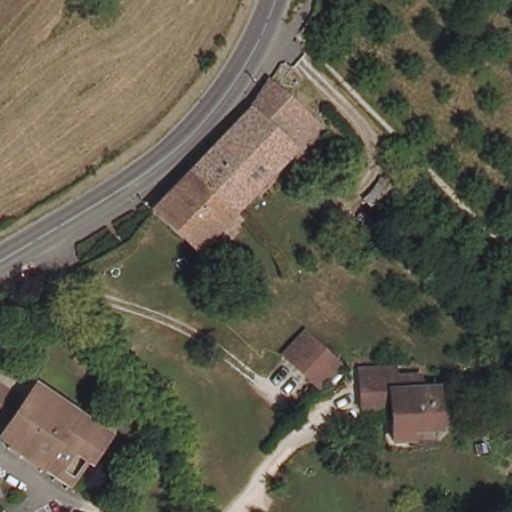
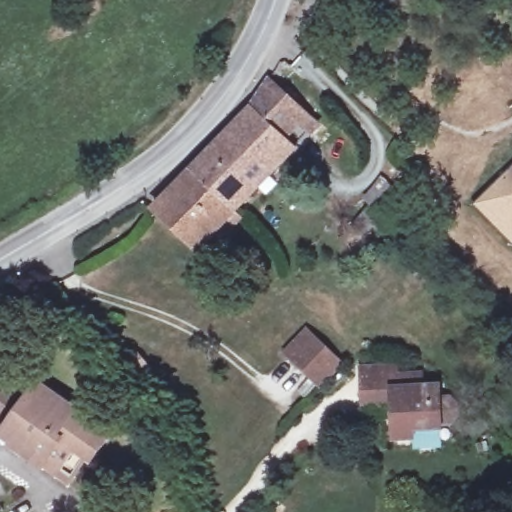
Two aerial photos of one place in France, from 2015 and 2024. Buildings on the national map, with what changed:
unchanged [(188,181),(265,94),(270,87),(319,133),(235,222),(188,181)]
new [(512,169),(512,245),(474,207),(512,169)]
unchanged [(205,256),(158,216),(188,181),(235,222),(205,256)]
unchanged [(307,335),(340,363),(330,374),(318,388),(285,360),(307,335)]
unchanged [(388,415),(366,416),(363,377),(392,376),(400,375),(401,385),(424,383),(425,396),(443,396),(444,407),(452,407),(460,414),(460,424),(453,435),(445,435),(446,441),(417,442),(417,451),(398,451),(396,425),(389,426),(388,415)]
unchanged [(7,388),(32,407),(46,388),(72,409),(68,413),(80,422),(83,418),(116,444),(105,460),(100,457),(78,485),(72,491),(47,472),(16,449),(21,442),(11,434),(15,429),(10,426),(0,431),(0,391),(7,388)]

